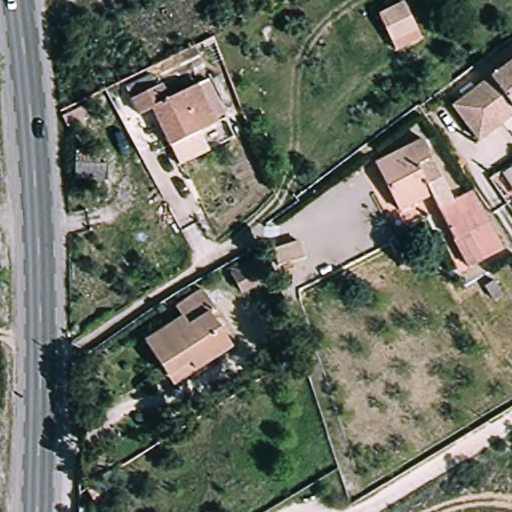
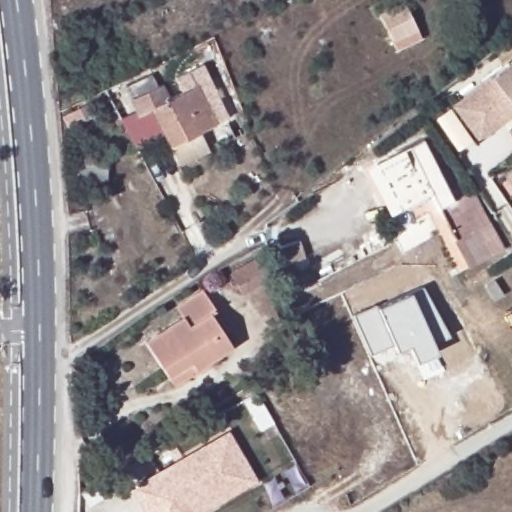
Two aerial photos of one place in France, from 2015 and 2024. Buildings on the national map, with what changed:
unchanged [(400,0),(405,0),(421,31),(396,43),(391,33),(393,32),(382,9),(400,0)]
unchanged [(512,114),(475,141),(450,107),(512,61),(512,114)]
unchanged [(150,70),(156,81),(160,79),(167,95),(207,75),(226,114),(198,127),(206,144),(178,158),(152,103),(138,110),(125,82),(150,70)]
unchanged [(423,133),(432,151),(431,151),(453,195),(471,185),(502,244),(469,262),(431,188),(400,205),(376,158),(423,133)]
unchanged [(106,179),(75,178),(75,162),(107,163),(106,179)]
unchanged [(298,240),(303,257),(278,266),(273,249),(298,240)]
unchanged [(230,273),(260,256),(270,276),(240,292),(230,273)]
unchanged [(167,370),(145,336),(182,312),(176,303),(202,285),(216,305),(210,309),(231,340),(195,364),(172,379),(167,370)]
new [(416,360),(408,343),(396,348),(393,342),(370,353),(353,315),(377,304),(410,290),(422,285),(450,336),(433,343),(436,351),(416,360)]
new [(144,512),(129,486),(228,429),(257,479),(202,512),(144,512)]

